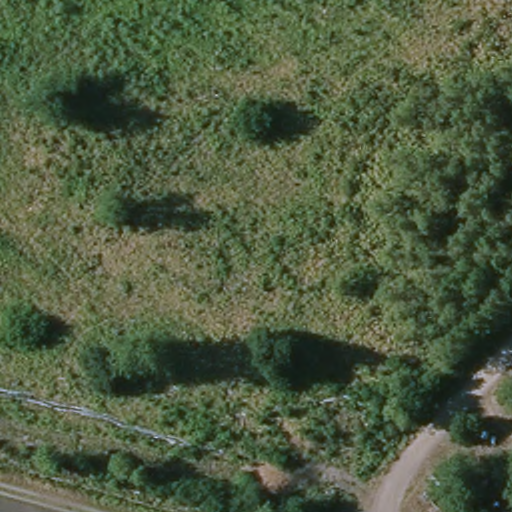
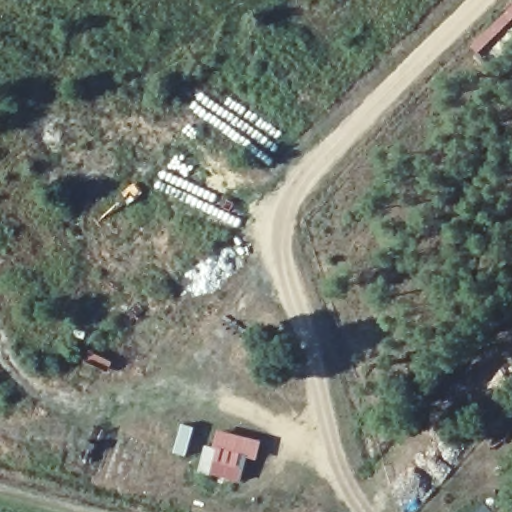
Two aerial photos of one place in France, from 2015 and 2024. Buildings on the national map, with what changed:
new [(240,465),(246,467),(241,483),(200,471),(207,447),(215,449),(221,430),(263,442),(258,460),(243,455),(240,465)]

